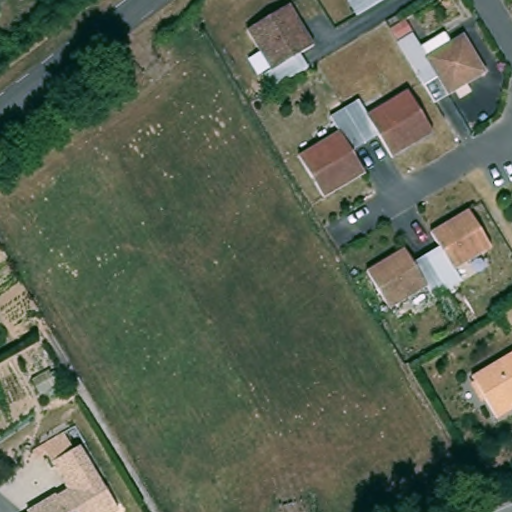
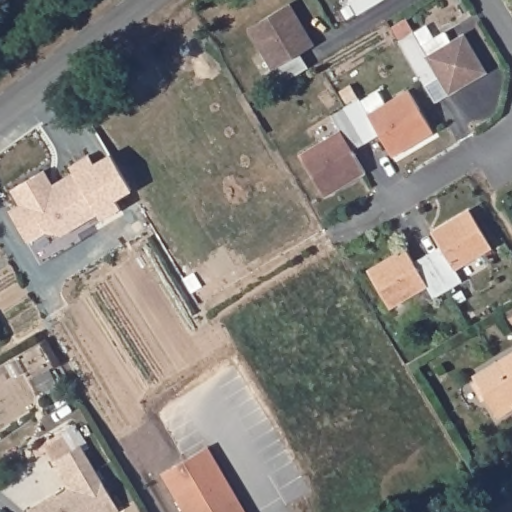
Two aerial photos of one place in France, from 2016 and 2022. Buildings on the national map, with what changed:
unchanged [(379,0),(357,14),(349,0),(379,0)]
unchanged [(265,75),(273,69),(248,27),(289,2),(315,43),(296,56),(305,70),(274,89),(265,75)]
unchanged [(425,79),(400,41),(415,32),(423,45),(446,31),(452,40),(465,32),(489,70),(452,93),(441,75),(428,84),(425,79)]
unchanged [(360,96),(370,111),(407,89),(435,131),(394,155),(377,130),(363,139),(343,107),(360,96)]
unchanged [(350,146),(366,174),(326,198),(300,155),(339,131),(328,116),(343,107),(363,139),(350,146)]
new [(18,194),(51,173),(59,187),(68,182),(80,175),(76,169),(95,157),(100,165),(116,156),(138,192),(122,201),(128,210),(109,221),(105,215),(69,237),(53,234),(35,245),(16,214),(26,207),(18,194)]
unchanged [(448,262),(438,246),(474,223),(498,261),(462,283),(468,292),(453,301),(434,271),(448,262)]
unchanged [(453,301),(440,309),(435,298),(399,323),(375,285),(413,261),(423,277),(434,271),(453,301)]
unchanged [(509,402),(512,407),(495,417),(469,376),(512,351),(512,401),(509,402)]
unchanged [(122,510),(119,512),(34,512),(32,508),(49,498),(54,505),(64,500),(60,494),(70,488),(55,463),(44,446),(65,433),(76,450),(82,446),(122,510)]
new [(182,487),(227,459),(260,512),(197,512),(182,487)]

